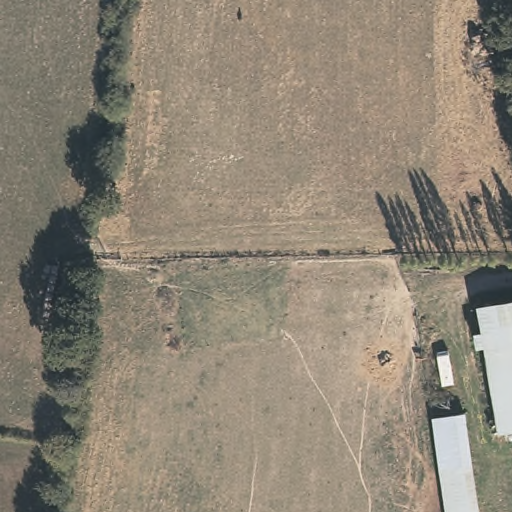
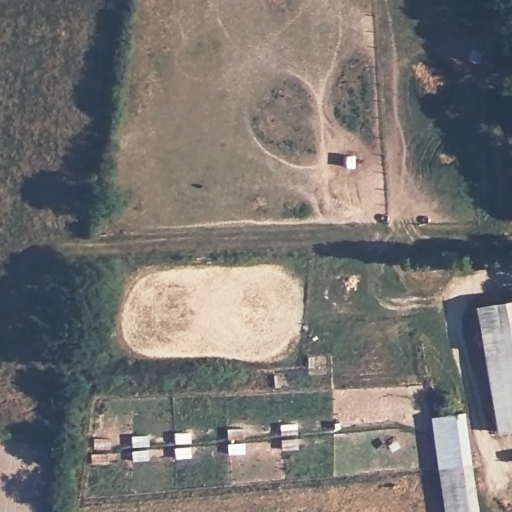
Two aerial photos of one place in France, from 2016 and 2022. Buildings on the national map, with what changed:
unchanged [(475,307),(512,303),(512,433),(496,436),(475,307)]
unchanged [(432,417),(464,413),(467,461),(440,465),(432,417)]
unchanged [(440,465),(467,461),(476,512),(444,512),(440,465)]

